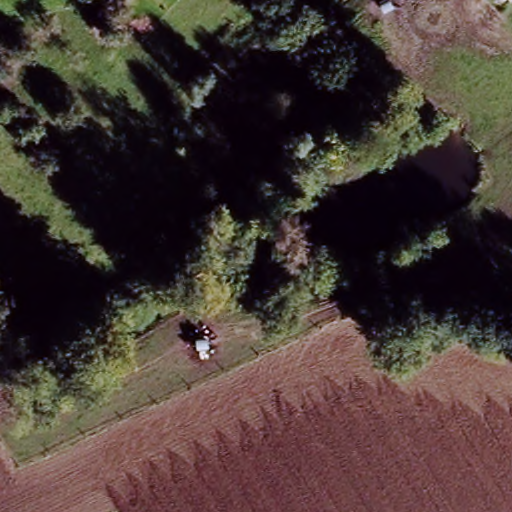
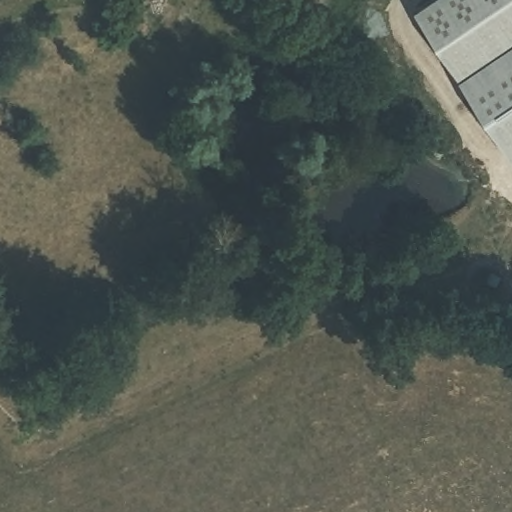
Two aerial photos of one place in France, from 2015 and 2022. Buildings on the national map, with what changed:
new [(512,0),(512,154),(414,10),(430,0),(512,0)]

